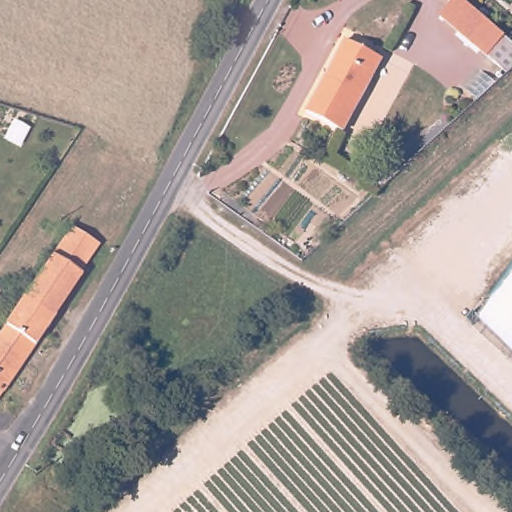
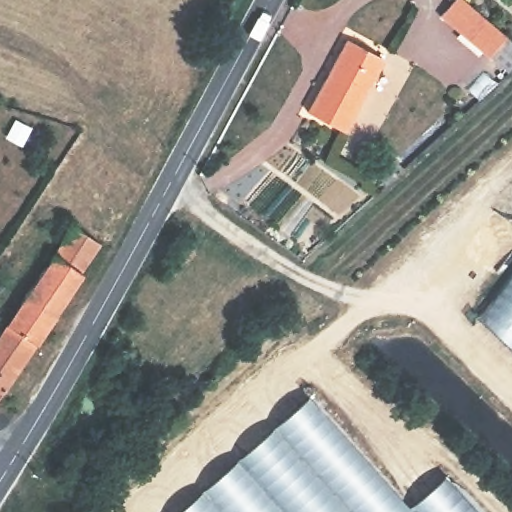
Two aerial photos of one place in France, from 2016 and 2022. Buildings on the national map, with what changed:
unchanged [(450,0),(466,0),(506,33),(512,39),(512,69),(510,71),(440,12),(450,0)]
unchanged [(307,110),(347,36),(382,55),(342,127),(307,110)]
unchanged [(0,334),(70,227),(99,248),(0,401),(0,334)]
unchanged [(480,318),(512,274),(512,350),(480,318)]
new [(410,507),(445,476),(477,512),(177,512),(307,395),(410,507)]

